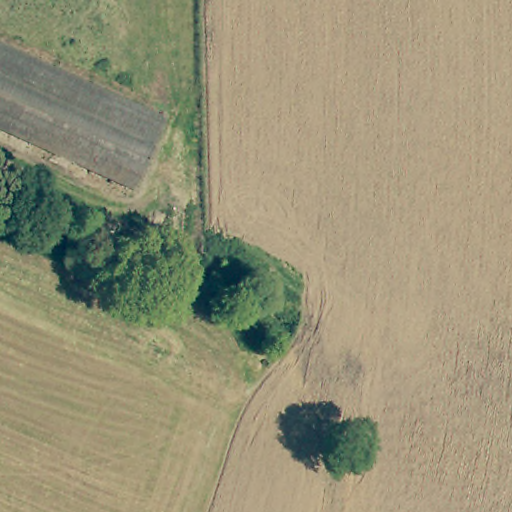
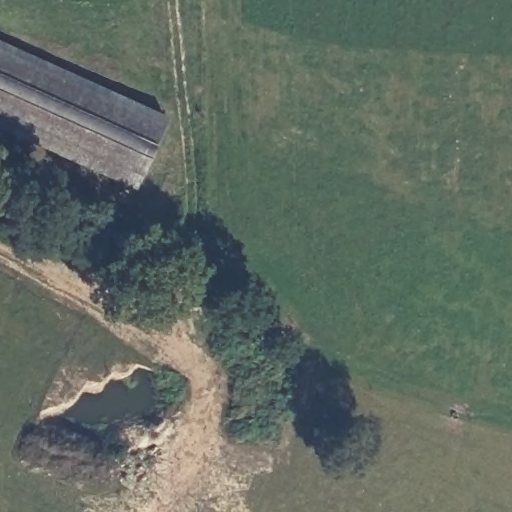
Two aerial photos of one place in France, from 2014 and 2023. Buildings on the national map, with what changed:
unchanged [(167,122),(137,188),(0,126),(0,44),(167,122)]

